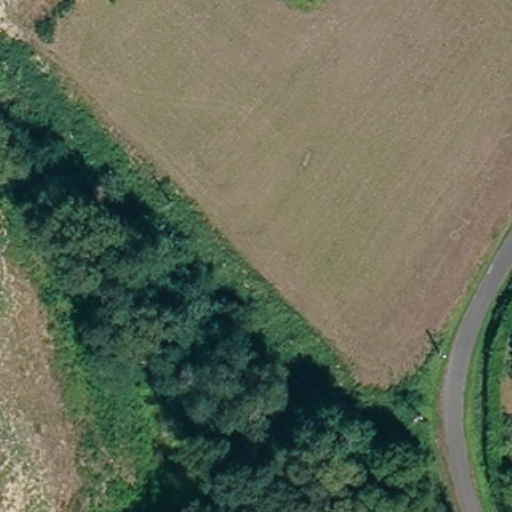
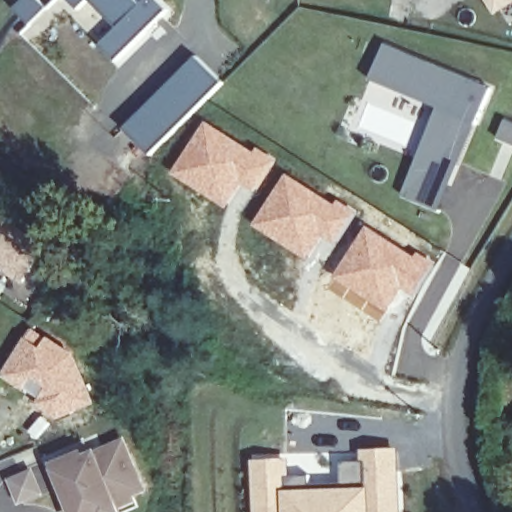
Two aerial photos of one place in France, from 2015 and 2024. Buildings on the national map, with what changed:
new [(74,0),(90,0),(81,7),(74,0)]
new [(102,42),(119,26),(94,0),(137,0),(141,4),(145,0),(160,0),(169,9),(117,59),(102,42)]
new [(486,0),(512,0),(512,4),(495,14),(486,0)]
new [(493,87),(442,210),(402,195),(440,107),(372,79),(387,44),(493,87)]
new [(152,152),(128,128),(199,55),(224,81),(152,152)]
new [(207,120),(254,150),(257,146),(277,159),(256,194),(242,186),(226,210),(173,173),(207,120)]
new [(287,172),(335,203),(337,199),(357,213),(335,246),(323,237),(307,261),(253,226),(287,172)]
new [(24,283),(0,268),(0,211),(49,244),(24,283)]
new [(367,226),(415,256),(418,251),(437,264),(414,297),(403,290),(378,323),(326,288),(367,226)]
new [(32,327),(47,335),(76,353),(97,402),(57,422),(56,421),(37,439),(27,430),(49,413),(37,400),(0,375),(32,327)]
new [(85,449),(87,453),(99,449),(128,436),(152,491),(123,504),(126,512),(72,512),(52,465),(85,449)]
new [(291,458),(292,474),(307,473),(308,472),(312,476),(315,485),(340,483),(341,461),(362,460),(361,448),(400,447),(402,512),(257,512),(257,508),(256,460),(291,458)]
new [(34,466),(45,492),(18,505),(7,479),(34,466)]

